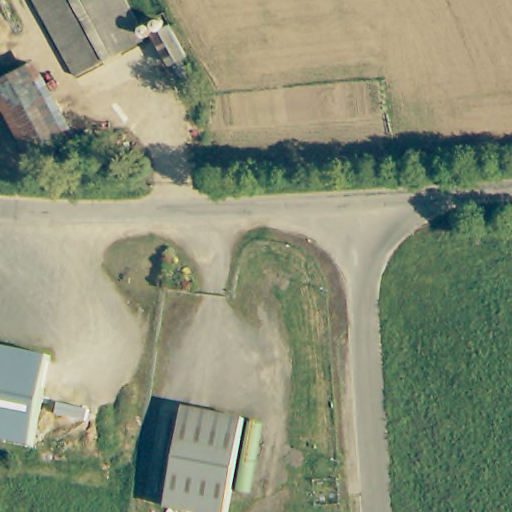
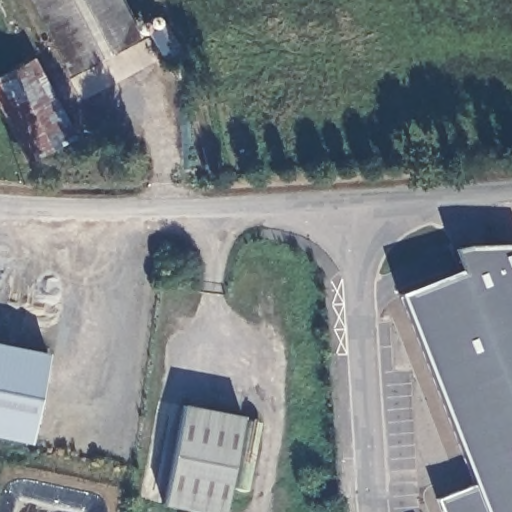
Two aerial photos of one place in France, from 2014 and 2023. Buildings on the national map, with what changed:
unchanged [(34,0),(118,0),(138,40),(73,75),(34,0)]
unchanged [(158,61),(142,29),(146,27),(159,21),(175,55),(162,60),(158,61)]
unchanged [(71,139),(30,159),(0,97),(0,76),(31,60),(71,139)]
new [(512,244),(512,512),(442,512),(437,499),(475,484),(399,294),(461,269),(453,248),(467,245),(512,244)]
unchanged [(46,359),(24,445),(0,440),(0,349),(46,359)]
unchanged [(223,512),(200,512),(162,504),(181,405),(243,417),(223,512)]

